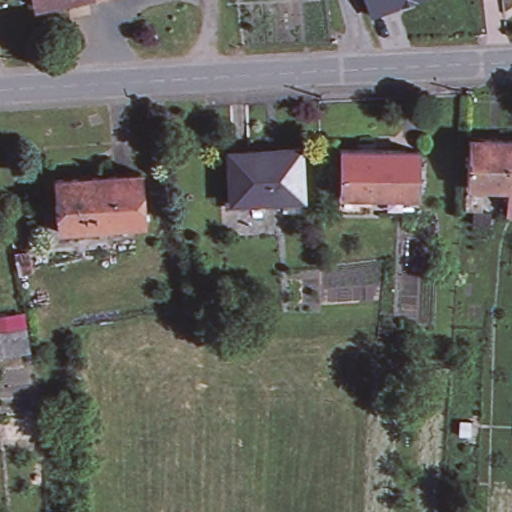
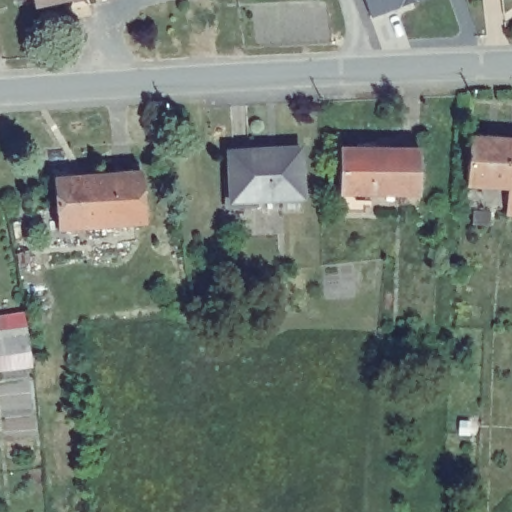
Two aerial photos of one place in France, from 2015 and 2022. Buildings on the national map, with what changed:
unchanged [(29,14),(26,0),(83,0),(83,2),(29,14)]
unchanged [(90,0),(83,2),(83,0),(90,0)]
unchanged [(364,0),(418,0),(371,17),(364,0)]
unchanged [(497,189),(497,195),(488,195),(488,189),(466,188),(469,141),(510,141),(507,189),(497,189)]
unchanged [(512,141),(512,213),(506,213),(507,189),(510,141),(512,141)]
unchanged [(367,200),(367,212),(341,212),(342,192),(340,192),(341,146),(387,147),(396,147),(422,148),(422,194),(393,194),(386,193),(359,192),(359,199),(367,200)]
unchanged [(305,150),(306,197),(236,201),(234,153),(305,150)]
unchanged [(148,222),(57,233),(52,188),(51,181),(142,171),(148,222)]
unchanged [(491,208),(492,222),(474,222),(474,209),(491,208)]
unchanged [(25,348),(0,351),(0,331),(23,328),(25,348)]
unchanged [(467,419),(467,432),(458,432),(458,419),(467,419)]

